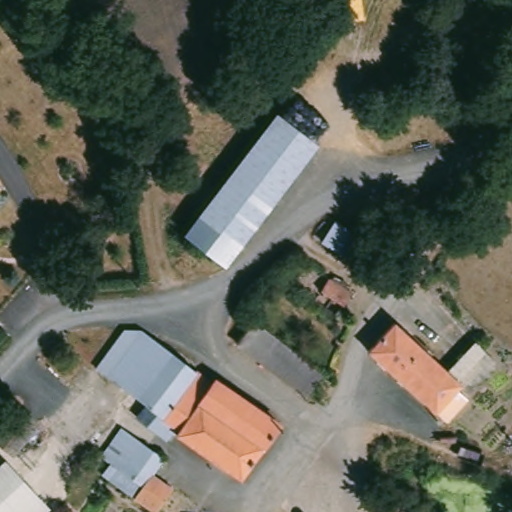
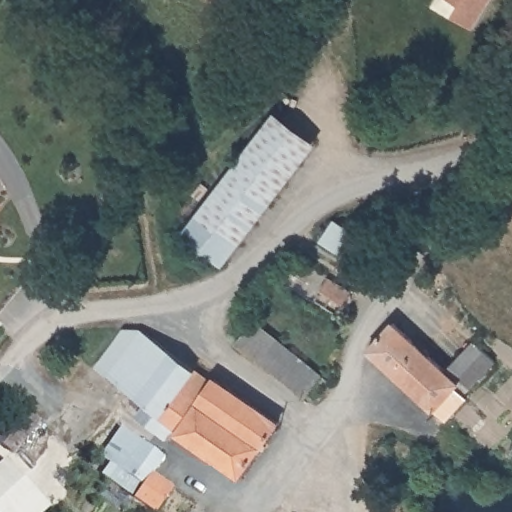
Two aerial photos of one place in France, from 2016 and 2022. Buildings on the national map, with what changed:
new [(454,17),(462,7),(451,0),(493,0),(475,30),(454,17)]
unchanged [(235,268),(194,240),(272,120),(277,113),(317,144),(309,157),(235,268)]
unchanged [(354,293),(346,306),(324,292),(333,279),(354,293)]
unchanged [(246,318),(315,370),(328,378),(310,400),(230,338),(246,318)]
unchanged [(399,325),(463,383),(458,388),(469,400),(449,422),(373,352),(399,325)]
unchanged [(96,370),(123,330),(141,328),(149,336),(114,382),(96,370)]
unchanged [(149,336),(219,386),(222,382),(287,427),(245,482),(183,439),(185,435),(114,382),(149,336)]
unchanged [(463,384),(483,362),(468,348),(475,341),(498,362),(491,368),(471,391),(463,384)]
unchanged [(15,455),(0,442),(0,434),(23,407),(41,423),(15,455)]
unchanged [(117,433),(159,464),(149,479),(170,493),(157,512),(144,512),(135,505),(132,502),(133,502),(141,490),(98,460),(117,433)]
unchanged [(29,512),(0,512),(0,466),(8,460),(44,499),(29,512)]

